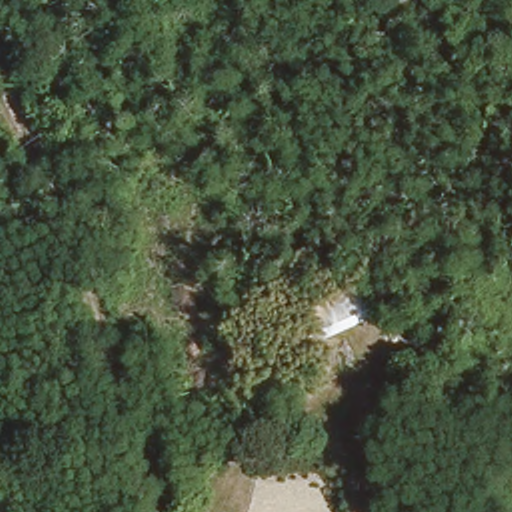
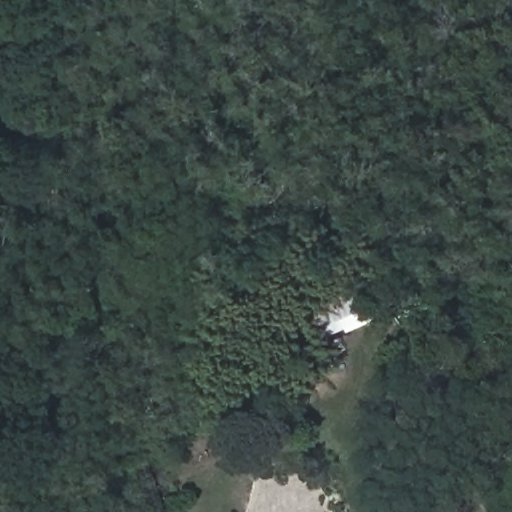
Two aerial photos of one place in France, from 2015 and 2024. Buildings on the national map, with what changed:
unchanged [(309,302),(360,278),(377,315),(322,338),(309,302)]

